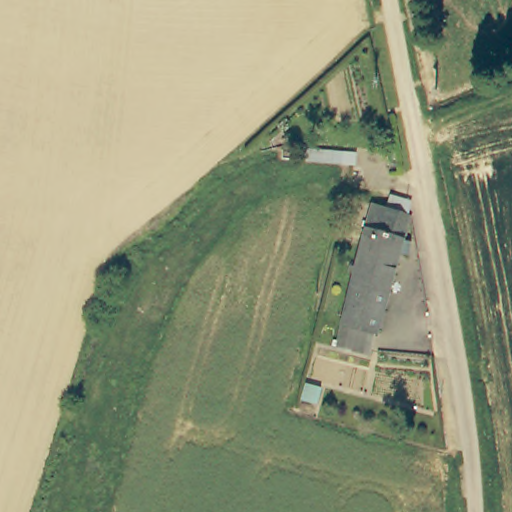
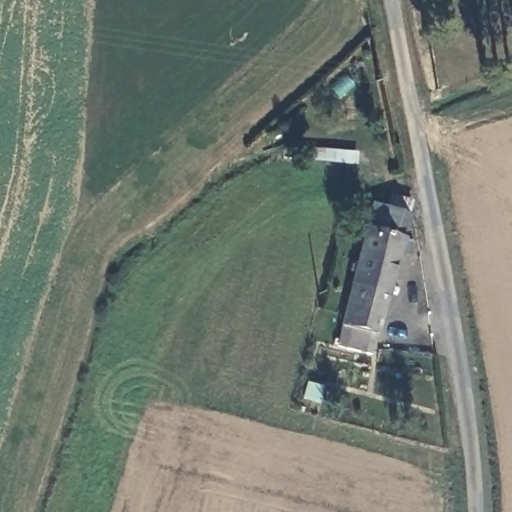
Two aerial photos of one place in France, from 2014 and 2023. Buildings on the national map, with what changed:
unchanged [(417,207),(411,232),(418,235),(414,250),(406,249),(377,347),(373,350),(367,372),(335,365),(359,271),(355,268),(357,261),(362,261),(371,223),(385,226),(391,202),(417,207)]

